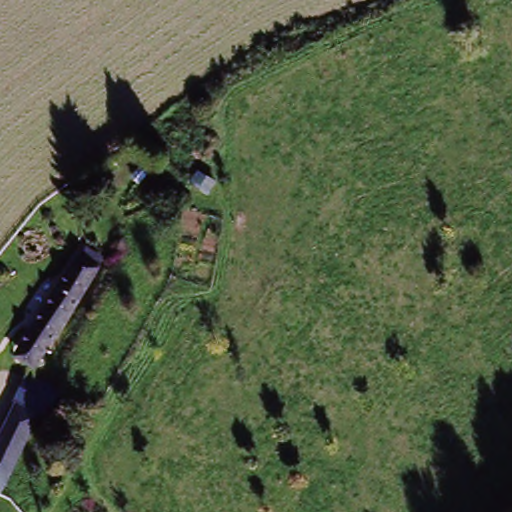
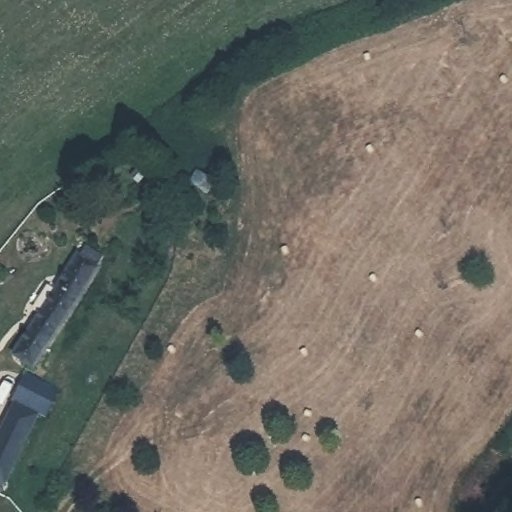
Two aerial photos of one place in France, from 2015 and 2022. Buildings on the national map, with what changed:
unchanged [(20,361),(26,349),(19,344),(75,255),(96,267),(35,368),(20,361)]
unchanged [(40,393),(0,480),(0,433),(22,386),(40,393)]

